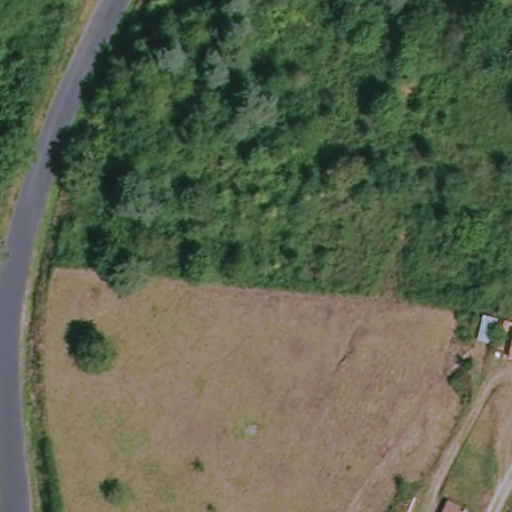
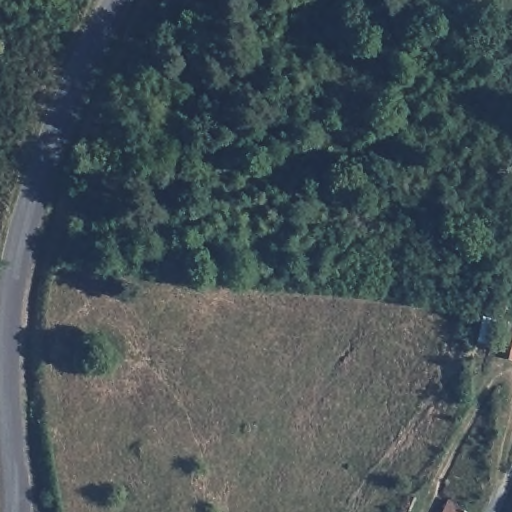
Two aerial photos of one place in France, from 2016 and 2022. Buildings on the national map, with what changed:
unchanged [(507,358),(508,351),(496,348),(497,343),(477,340),(482,315),(510,320),(508,327),(512,328),(512,359),(507,358)]

